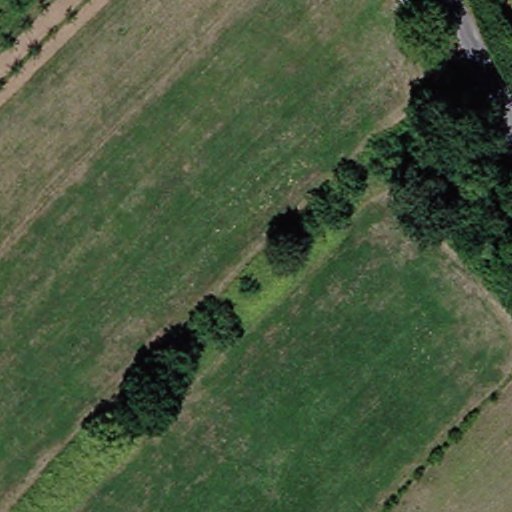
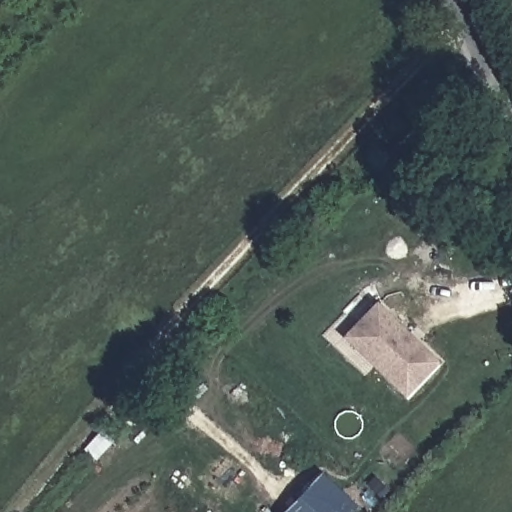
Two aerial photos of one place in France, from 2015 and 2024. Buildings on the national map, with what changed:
new [(440,361),(408,395),(357,347),(346,336),(359,322),(378,302),(440,361)]
new [(321,472),(356,507),(351,512),(282,512),(321,472)]

